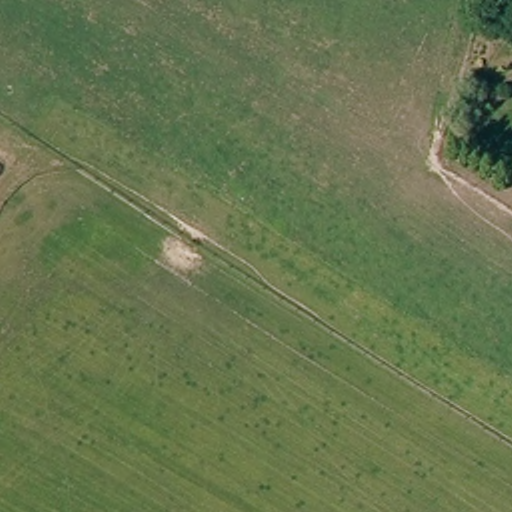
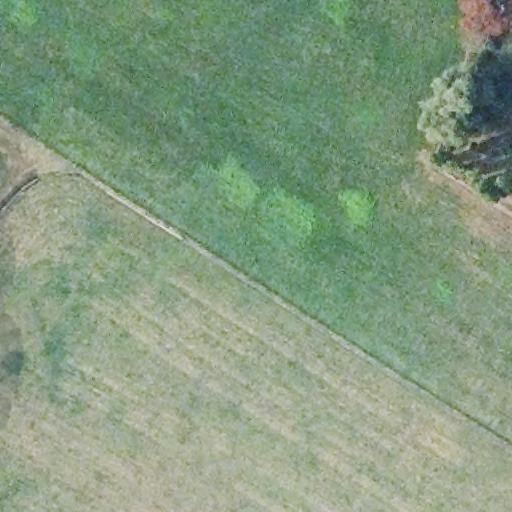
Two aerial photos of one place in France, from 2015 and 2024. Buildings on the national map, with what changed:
unchanged [(506,11),(511,0),(512,0),(512,14),(506,11)]

